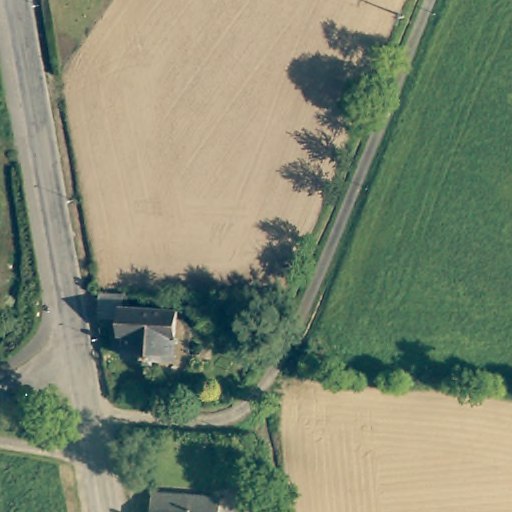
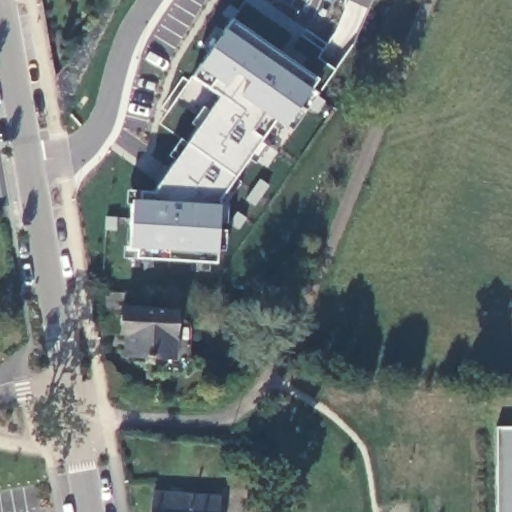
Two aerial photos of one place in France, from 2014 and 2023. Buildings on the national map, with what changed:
new [(313,88),(284,129),(272,121),(218,200),(215,262),(136,257),(136,248),(127,248),(130,198),(139,199),(139,190),(153,190),(218,97),(190,77),(229,19),(318,80),(313,88)]
unchanged [(183,359),(133,356),(134,333),(129,333),(131,308),(185,311),(183,359)]
new [(496,428),(512,427),(512,512),(496,512),(496,428)]
unchanged [(254,445),(253,464),(228,462),(229,443),(254,445)]
unchanged [(166,493),(231,498),(230,512),(165,512),(166,493)]

